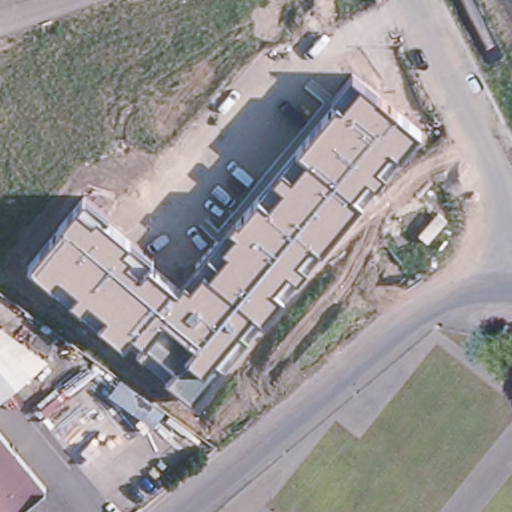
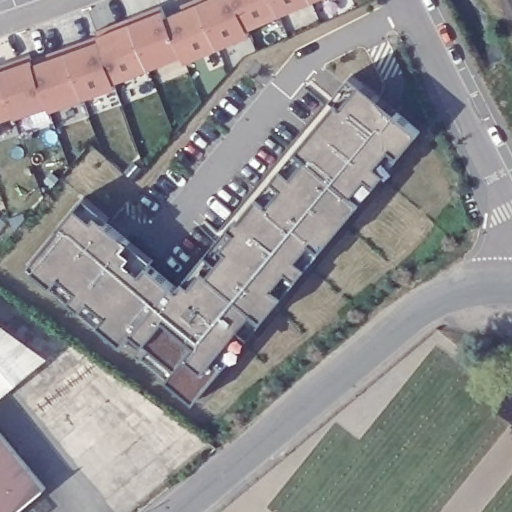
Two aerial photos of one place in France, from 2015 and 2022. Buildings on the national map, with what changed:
new [(35,62),(100,39),(98,35),(162,9),(165,15),(202,0),(316,0),(249,28),(251,33),(187,61),(183,53),(115,81),(117,87),(50,110),(49,104),(17,117),(15,114),(0,120),(0,68),(32,58),(35,62)]
unchanged [(58,228),(57,227),(82,197),(107,218),(104,222),(150,260),(151,260),(147,265),(181,293),(200,271),(194,266),(215,240),(222,245),(240,223),(236,220),(257,195),(295,151),(294,150),(335,102),(330,99),(351,75),(419,131),(192,403),(164,380),(166,378),(124,342),(122,345),(27,265),(58,228)]
unchanged [(0,394),(0,323),(45,356),(0,394)]
unchanged [(16,512),(0,512),(0,431),(47,486),(16,512)]

